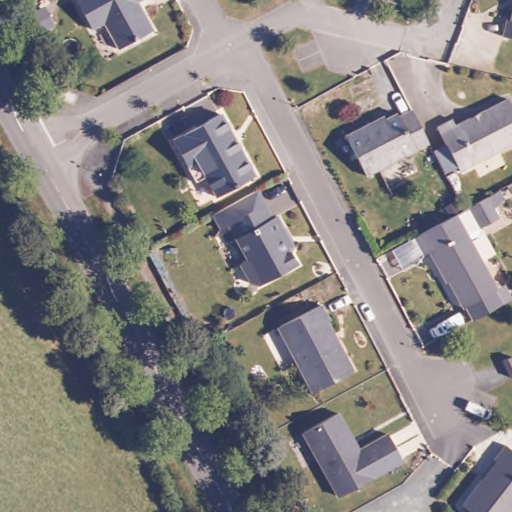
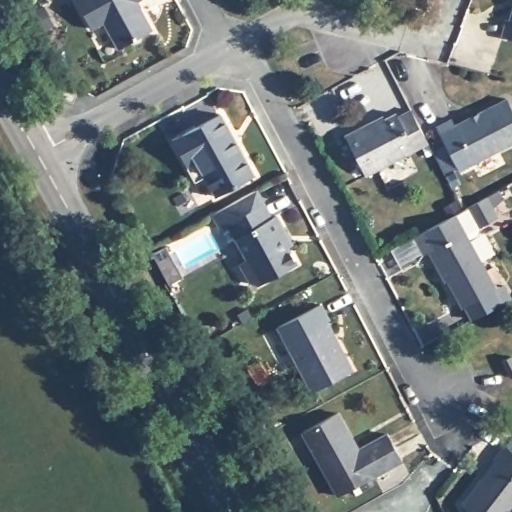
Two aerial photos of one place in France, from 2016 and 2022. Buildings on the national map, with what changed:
unchanged [(159,21),(124,39),(109,13),(97,19),(88,0),(148,0),(159,21)]
unchanged [(507,10),(510,11),(512,2),(512,29),(502,26),(507,10)]
unchanged [(457,110),(460,116),(512,90),(512,138),(466,162),(463,158),(451,164),(440,143),(439,142),(451,135),(441,117),(457,110)]
unchanged [(436,134),(372,167),(351,126),(388,106),(390,110),(401,104),(403,108),(417,99),(436,134)]
unchanged [(263,168),(226,190),(213,169),(203,174),(181,133),(228,107),(263,168)]
unchanged [(466,304),(450,276),(453,275),(450,268),(442,266),(431,246),(425,249),(416,232),(465,205),(488,192),(500,213),(481,223),(480,230),(470,235),(498,286),(497,287),(503,300),(475,316),(467,303),(466,304)]
unchanged [(275,210),(279,207),(296,236),(291,239),(301,256),(264,278),(255,275),(245,258),(252,253),(232,216),(268,196),(275,210)]
unchanged [(329,314),(327,315),(353,364),(314,387),(277,321),(320,298),(329,314)]
unchanged [(512,354),(512,364),(507,356),(512,354)]
unchanged [(362,445),(390,427),(405,454),(342,492),(305,429),(340,407),(362,445)]
unchanged [(474,512),(475,510),(461,498),(482,473),(484,475),(499,457),(495,454),(507,438),(512,442),(512,507),(508,512),(474,512)]

